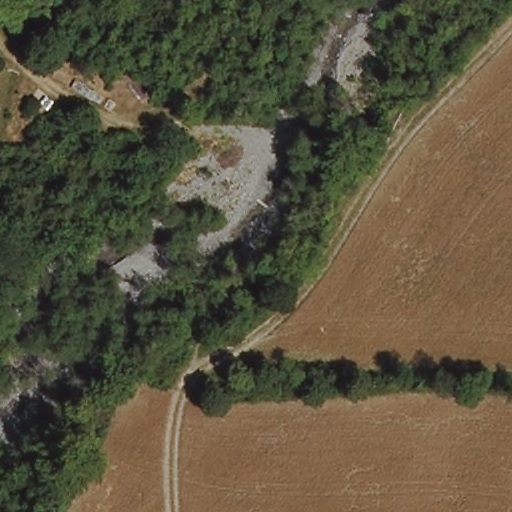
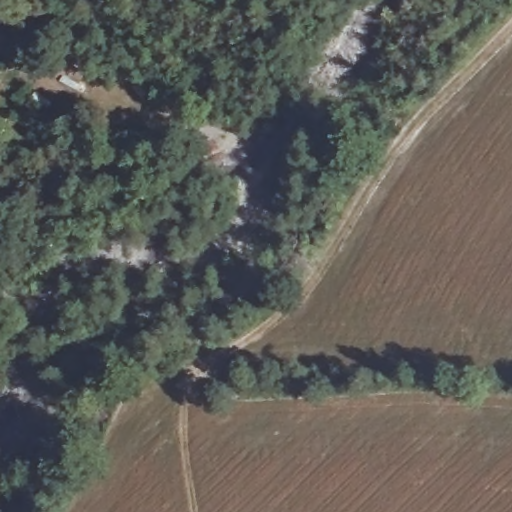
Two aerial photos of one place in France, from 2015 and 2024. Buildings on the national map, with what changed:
[]

